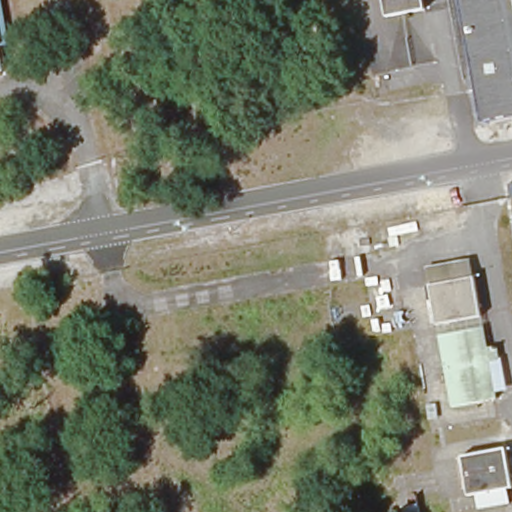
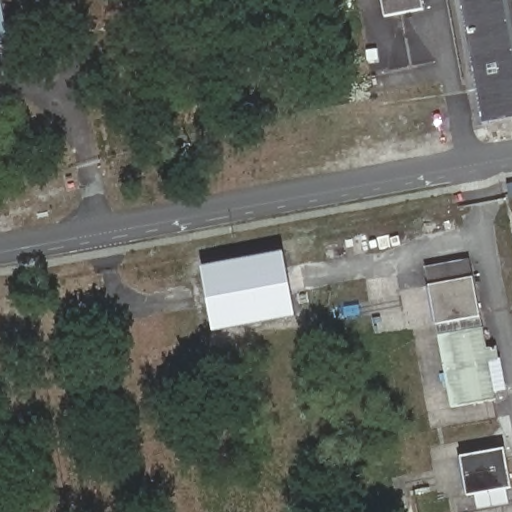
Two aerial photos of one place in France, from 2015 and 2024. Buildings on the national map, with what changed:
unchanged [(9,45),(1,47),(3,62),(0,63),(0,0),(1,0),(9,45)]
unchanged [(426,14),(386,20),(383,0),(424,0),(426,14)]
unchanged [(484,121),(481,104),(461,0),(512,0),(512,115),(484,121)]
demolished [(356,139),(345,142),(342,123),(353,121),(356,139)]
new [(213,333),(202,266),(285,252),(296,317),(213,333)]
unchanged [(439,265),(440,275),(429,276),(428,267),(439,265)]
unchanged [(472,273),(479,312),(437,321),(429,281),(472,273)]
unchanged [(432,337),(476,330),(479,345),(488,345),(498,397),(489,398),(446,407),(432,337)]
unchanged [(501,452),(509,490),(467,497),(461,459),(501,452)]

